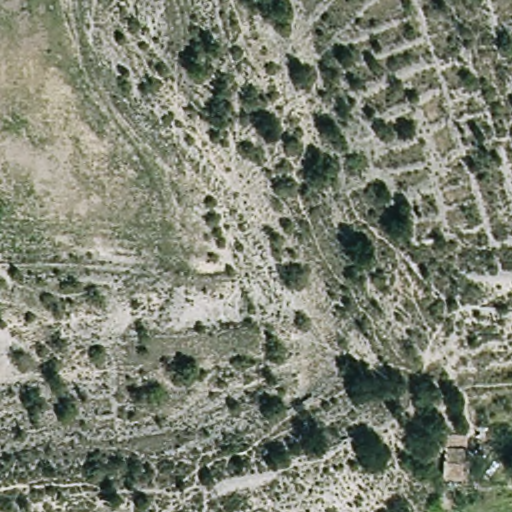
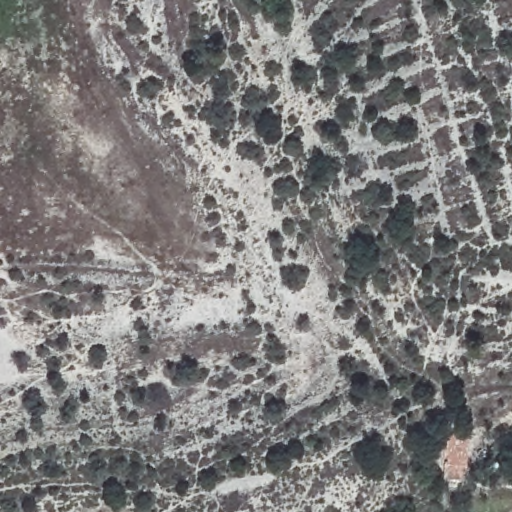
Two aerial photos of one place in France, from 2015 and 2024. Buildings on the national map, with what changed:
unchanged [(447,447),(468,447),(467,476),(445,477),(447,447)]

